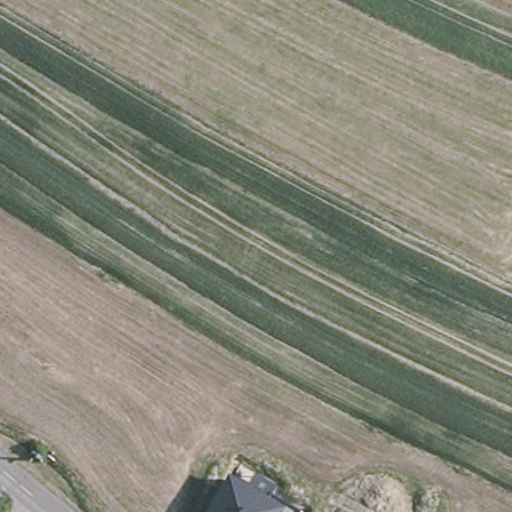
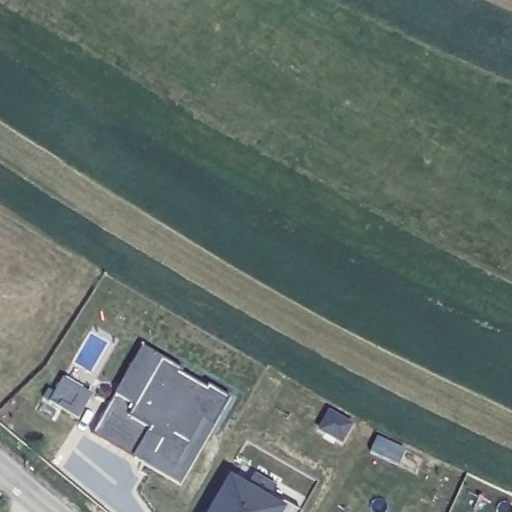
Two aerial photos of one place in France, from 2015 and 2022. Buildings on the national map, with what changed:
new [(180,368),(177,375),(207,390),(209,387),(231,399),(182,485),(93,434),(116,395),(143,347),(180,368)]
unchanged [(231,475),(250,486),(257,474),(277,486),(271,494),(298,511),(297,512),(209,512),(231,475)]

